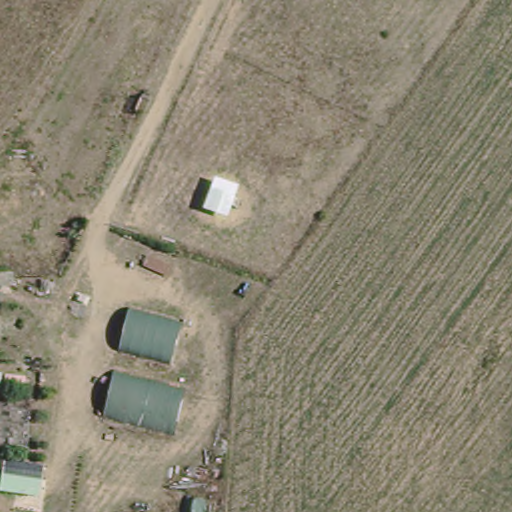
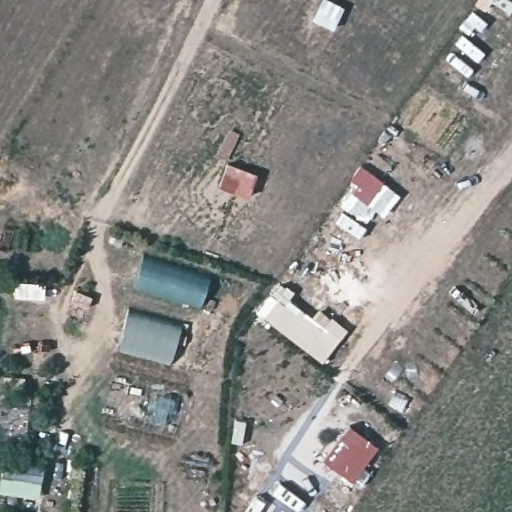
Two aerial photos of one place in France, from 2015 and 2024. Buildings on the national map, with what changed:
unchanged [(223,200),(231,168),(259,175),(248,207),(223,200)]
demolished [(192,216),(200,184),(227,191),(217,223),(192,216)]
new [(210,277),(200,305),(131,286),(141,255),(210,277)]
new [(282,283),(295,293),(289,300),(310,318),(318,306),(348,330),(321,362),(260,313),(282,283)]
unchanged [(128,307),(181,323),(168,366),(115,350),(128,307)]
unchanged [(186,391),(176,434),(103,416),(113,372),(186,391)]
new [(379,446),(353,479),(322,455),(348,423),(379,446)]
unchanged [(40,500),(0,494),(0,488),(5,460),(46,467),(40,500)]

